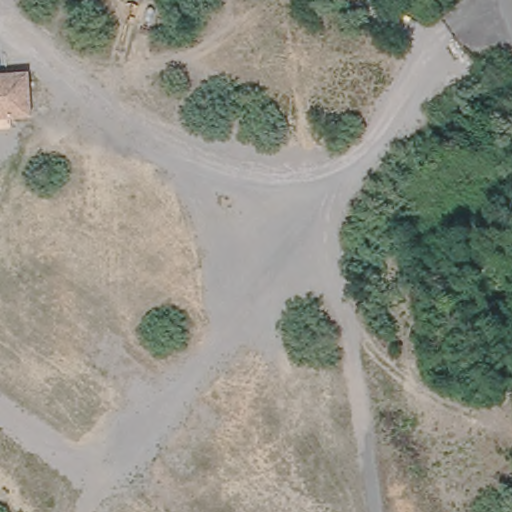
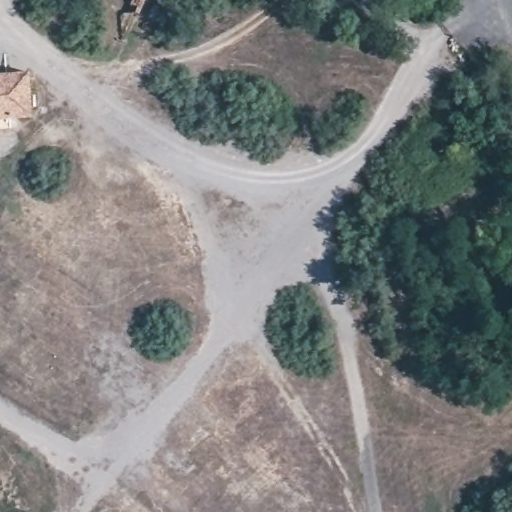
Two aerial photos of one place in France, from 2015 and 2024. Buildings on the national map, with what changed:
unchanged [(0,122),(0,70),(28,69),(32,119),(0,122)]

